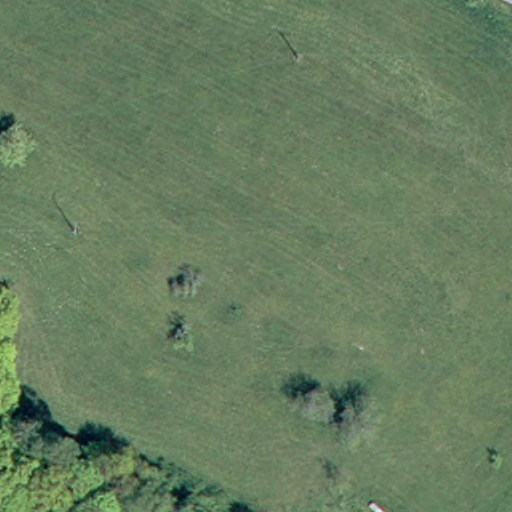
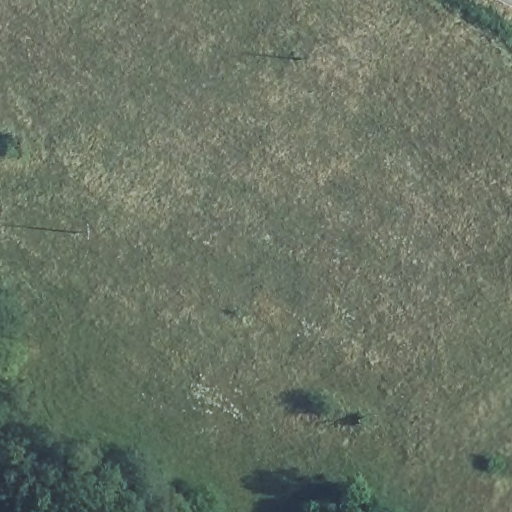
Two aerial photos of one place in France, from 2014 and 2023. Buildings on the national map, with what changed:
[]

